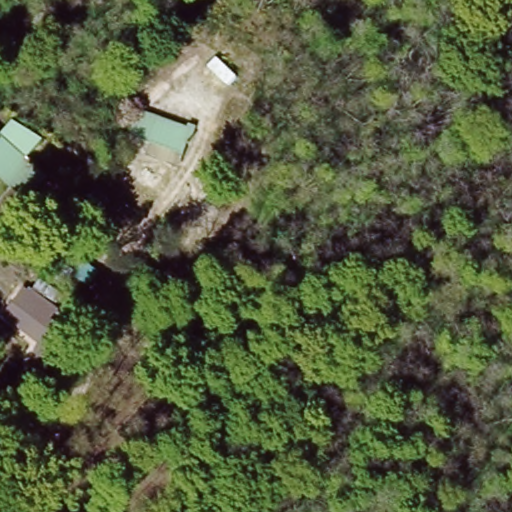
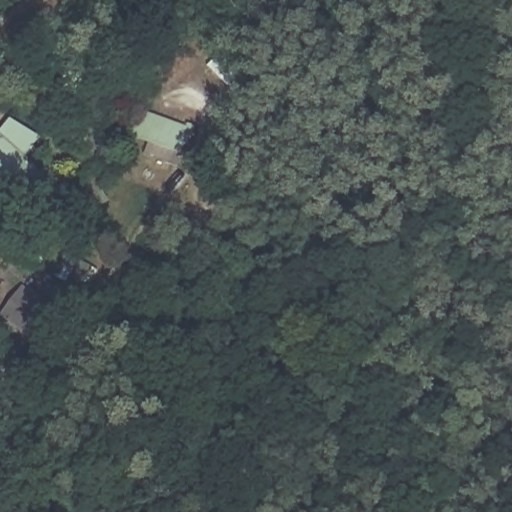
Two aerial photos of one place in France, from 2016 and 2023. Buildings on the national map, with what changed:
unchanged [(201,124),(187,164),(123,146),(138,105),(201,124)]
unchanged [(25,196),(0,173),(0,135),(42,177),(25,196)]
unchanged [(6,307),(0,302),(0,299),(3,295),(8,288),(46,311),(37,327),(33,334),(20,326),(25,319),(6,307)]
unchanged [(25,394),(10,387),(21,361),(36,368),(25,394)]
unchanged [(11,455),(0,451),(0,446),(5,436),(17,441),(11,455)]

